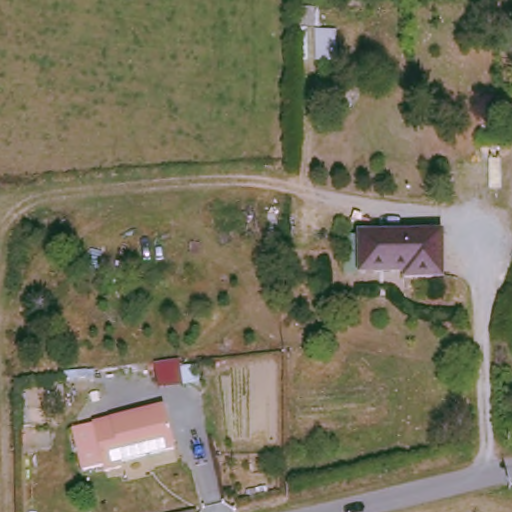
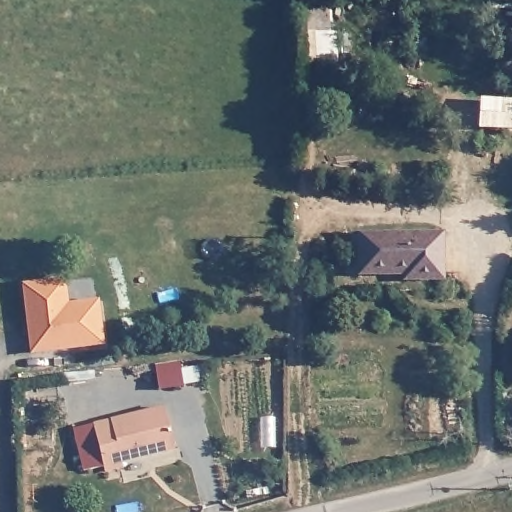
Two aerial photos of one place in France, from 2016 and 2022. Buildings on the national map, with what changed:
unchanged [(385,275),(360,275),(360,236),(442,236),(442,280),(405,280),(405,275),(385,275)]
new [(21,283),(66,277),(68,302),(99,299),(103,345),(31,353),(21,283)]
unchanged [(158,390),(154,366),(181,362),(181,370),(197,368),(199,382),(183,385),(183,387),(158,390)]
unchanged [(73,430),(93,425),(93,423),(164,407),(174,450),(121,462),(123,468),(105,472),(103,466),(83,471),(73,430)]

